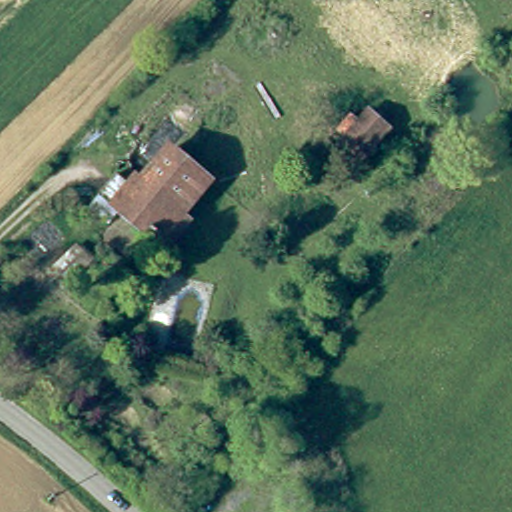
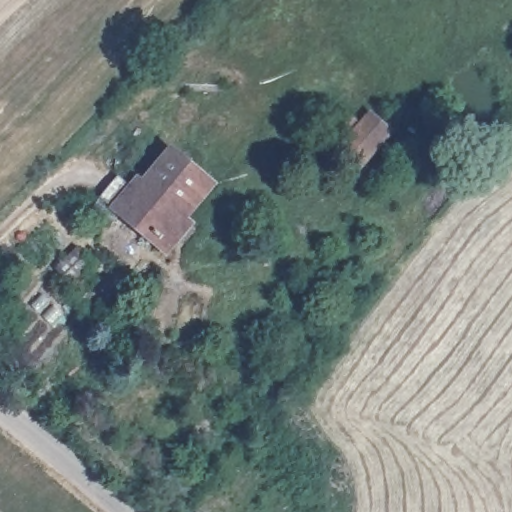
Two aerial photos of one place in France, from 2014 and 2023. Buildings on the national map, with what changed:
unchanged [(395,140),(371,164),(352,145),(375,123),(395,140)]
unchanged [(95,205),(106,193),(124,171),(146,189),(152,182),(150,180),(180,145),(215,174),(184,210),(195,220),(176,243),(160,230),(156,235),(126,210),(115,222),(95,205)]

